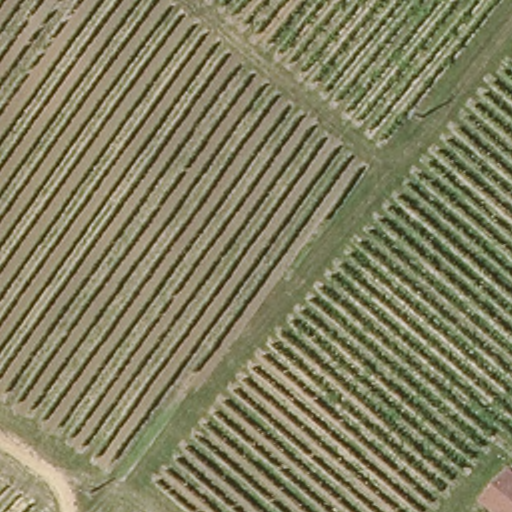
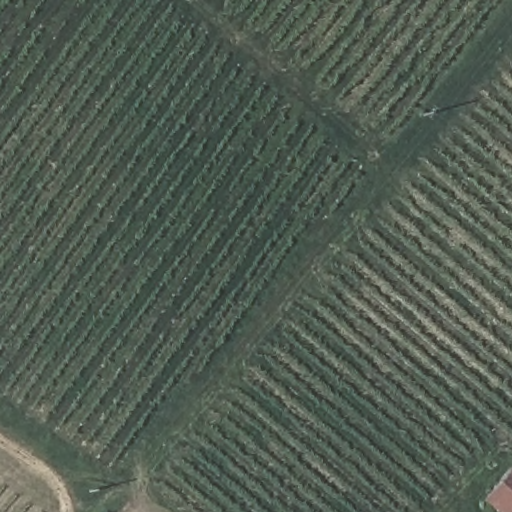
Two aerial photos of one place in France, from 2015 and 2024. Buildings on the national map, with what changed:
unchanged [(480,502),(506,469),(512,473),(512,512),(492,512),(480,502)]

